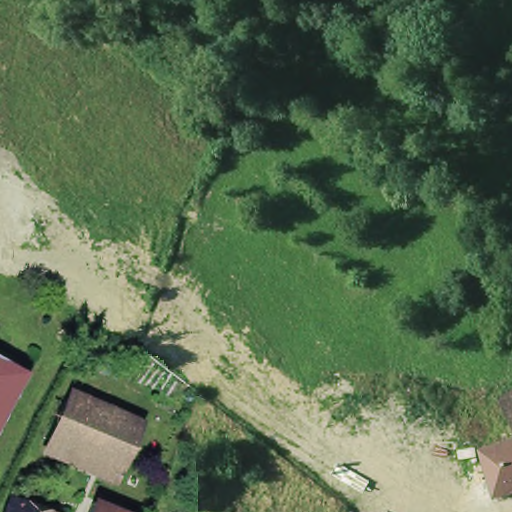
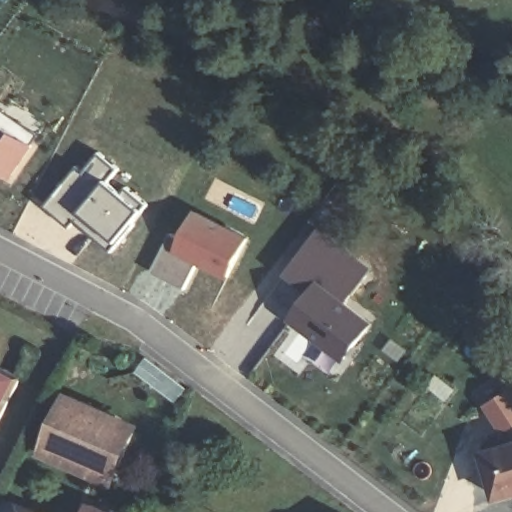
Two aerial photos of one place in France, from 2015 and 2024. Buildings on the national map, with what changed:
new [(17,180),(0,168),(0,103),(45,135),(17,180)]
new [(80,165),(84,168),(101,149),(122,167),(113,179),(123,188),(127,184),(150,204),(112,252),(75,221),(72,225),(46,204),(80,165)]
new [(252,236),(231,279),(202,265),(189,290),(157,272),(177,235),(184,238),(197,209),(252,236)]
new [(346,357),(293,317),(319,283),(294,264),(317,234),(369,275),(347,303),(372,322),(346,357)]
unchanged [(0,426),(0,365),(25,378),(0,426)]
demolished [(500,394),(512,389),(512,418),(500,394)]
unchanged [(80,460),(39,442),(56,403),(97,421),(80,460)]
unchanged [(111,473),(80,460),(97,421),(127,433),(131,423),(145,429),(125,477),(120,475),(112,471),(111,473)]
unchanged [(499,492),(487,449),(512,443),(512,488),(499,492)]
unchanged [(12,503),(35,512),(9,512),(12,503)]
unchanged [(92,506),(102,510),(105,503),(127,512),(89,512),(92,506)]

